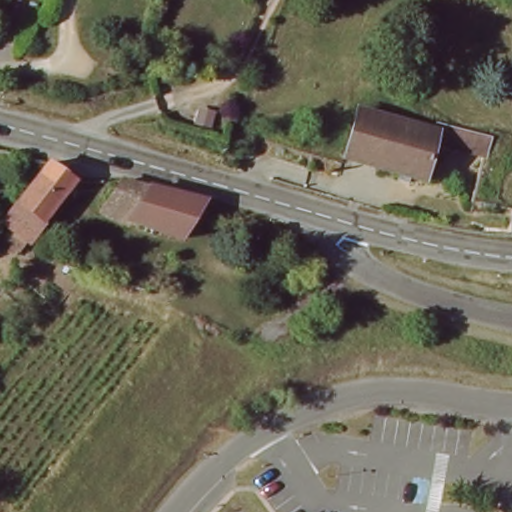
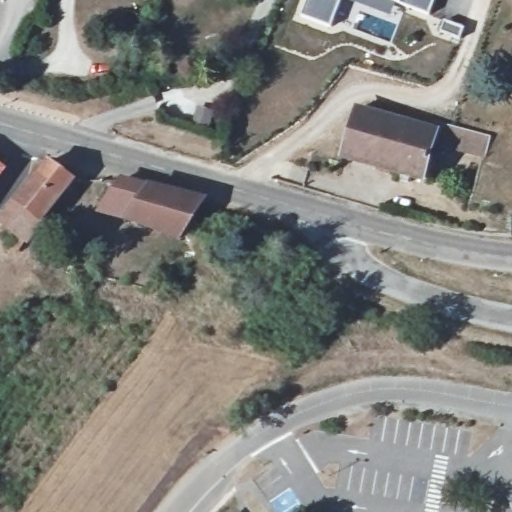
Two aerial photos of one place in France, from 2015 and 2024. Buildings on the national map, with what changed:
new [(298,15),(303,0),(342,0),(331,28),(298,15)]
new [(386,16),(345,0),(401,0),(399,6),(393,4),(391,9),(389,9),(386,16)]
new [(435,0),(429,16),(399,6),(401,0),(435,0)]
unchanged [(355,112),(385,121),(374,159),(344,151),(355,112)]
unchanged [(433,135),(436,125),(487,140),(482,163),(433,149),(427,174),(412,169),(409,183),(393,177),(397,165),(374,159),(385,121),(433,135)]
unchanged [(26,247),(0,227),(0,221),(47,157),(76,179),(26,247)]
new [(0,176),(0,167),(4,171),(0,176)]
unchanged [(103,210),(119,174),(138,178),(204,193),(200,201),(179,242),(103,210)]

